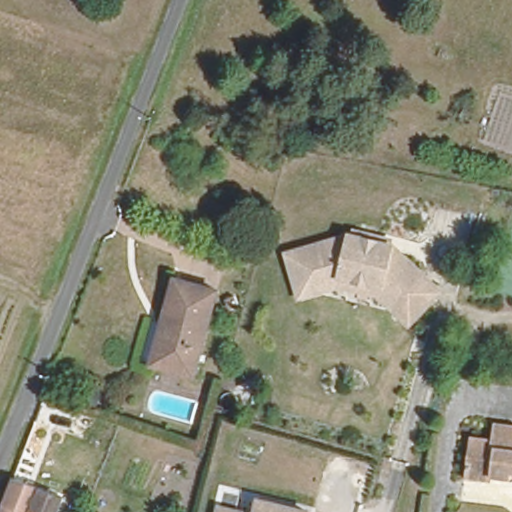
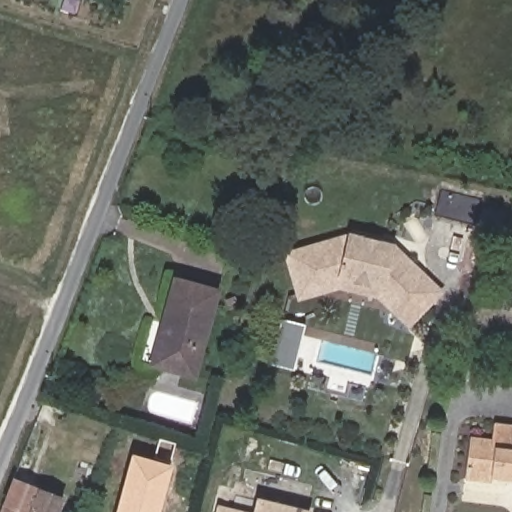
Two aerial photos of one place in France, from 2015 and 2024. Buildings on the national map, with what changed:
unchanged [(341,231),(346,231),(350,226),(390,236),(389,240),(394,241),(444,291),(407,325),(374,295),(339,287),(296,300),(280,250),(341,231)]
unchanged [(174,282),(213,293),(190,376),(152,366),(149,365),(147,365),(154,339),(156,340),(159,340),(174,282)]
unchanged [(494,484),(493,488),(468,485),(472,442),(512,447),(512,486),(494,484)]
new [(115,512),(131,454),(171,465),(159,512),(115,512)]
unchanged [(46,487),(37,512),(34,512),(26,509),(25,512),(0,512),(0,502),(10,475),(46,487)]
unchanged [(253,495),(310,508),(310,512),(213,512),(214,503),(251,511),(253,495)]

